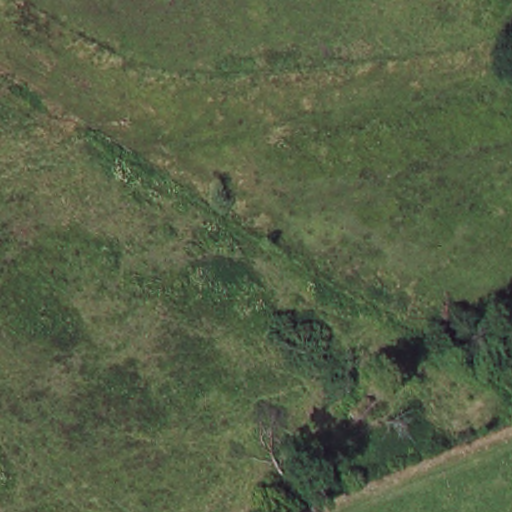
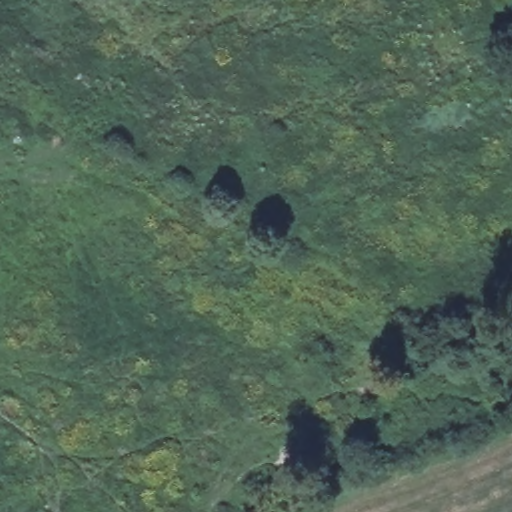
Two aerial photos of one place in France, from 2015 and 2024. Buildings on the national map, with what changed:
[]

